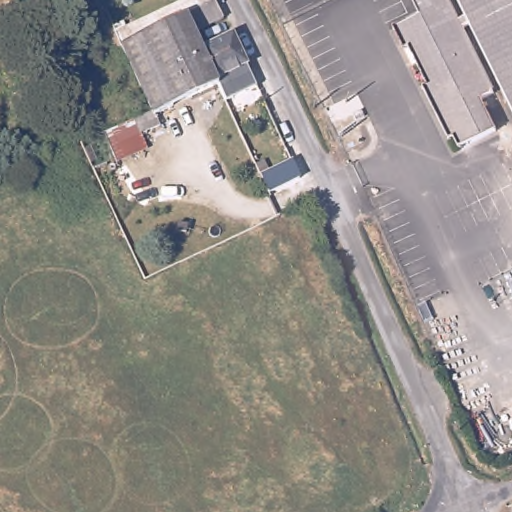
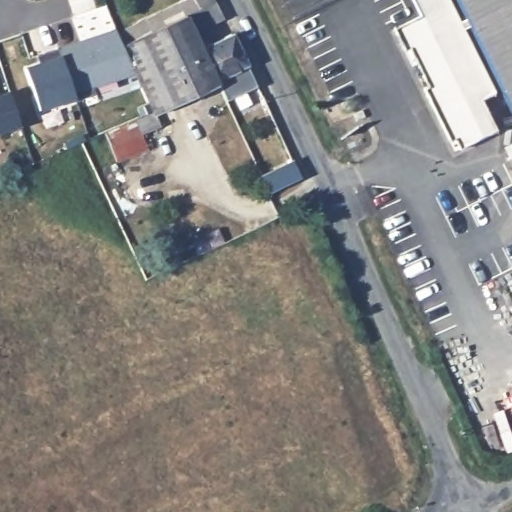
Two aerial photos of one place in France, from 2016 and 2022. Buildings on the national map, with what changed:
unchanged [(151,110),(145,96),(135,74),(123,45),(142,37),(134,19),(176,0),(212,0),(222,21),(195,33),(202,47),(233,34),(249,71),(218,86),(219,89),(200,97),(154,117),(151,110)]
unchanged [(407,50),(402,54),(391,31),(418,17),(409,0),(453,0),(467,27),(459,31),(464,40),(414,65),(407,50)]
unchanged [(472,36),(467,27),(453,0),(512,0),(512,17),(472,36)]
demolished [(17,146),(0,100),(0,1),(44,136),(17,146)]
unchanged [(512,17),(512,116),(472,36),(512,17)]
new [(117,30),(123,45),(135,74),(94,88),(96,95),(76,101),(59,49),(117,30)]
unchanged [(464,40),(492,97),(479,104),(495,134),(460,152),(454,141),(447,144),(421,91),(426,89),(414,65),(464,40)]
new [(39,110),(26,69),(46,62),(44,54),(59,49),(75,99),(39,110)]
new [(0,96),(10,93),(20,125),(0,132),(0,96)]
unchanged [(154,117),(159,130),(141,136),(148,150),(116,162),(105,131),(151,110),(154,117)]

